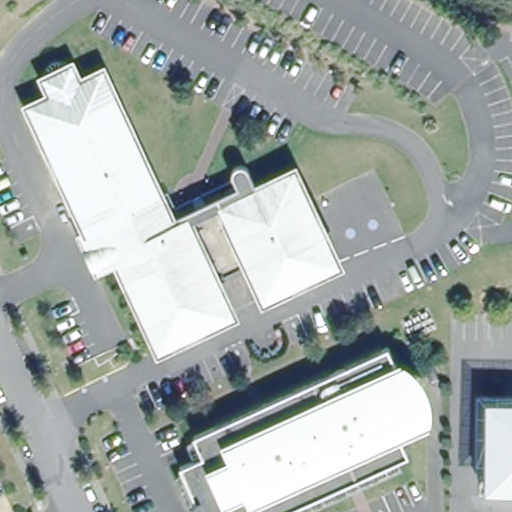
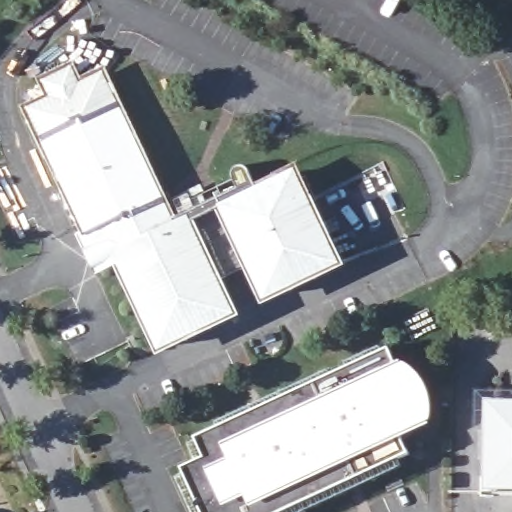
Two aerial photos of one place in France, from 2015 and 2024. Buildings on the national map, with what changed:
unchanged [(35,99),(59,87),(51,71),(76,59),(84,75),(107,64),(159,172),(87,207),(35,99)]
unchanged [(180,219),(247,187),(237,167),(237,166),(237,164),(237,162),(237,160),(238,159),(239,157),(241,156),(242,155),(244,155),(246,155),(247,155),(249,155),(250,156),(252,157),(252,159),(254,160),(262,179),(298,162),(342,252),(271,287),(255,255),(222,271),(237,303),(166,337),(122,247),(112,252),(103,257),(87,222),(92,220),(87,207),(159,172),(164,185),(180,219)]
unchanged [(203,457),(194,437),(389,347),(424,424),(400,435),(409,455),(284,512),(201,512),(180,467),(203,457)]
unchanged [(486,490),(487,401),(512,401),(512,490),(486,490)]

